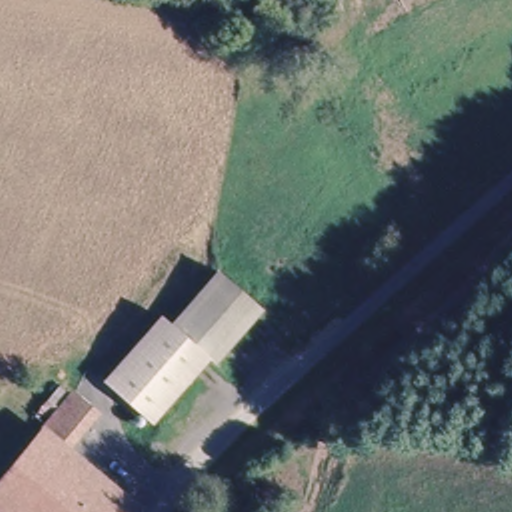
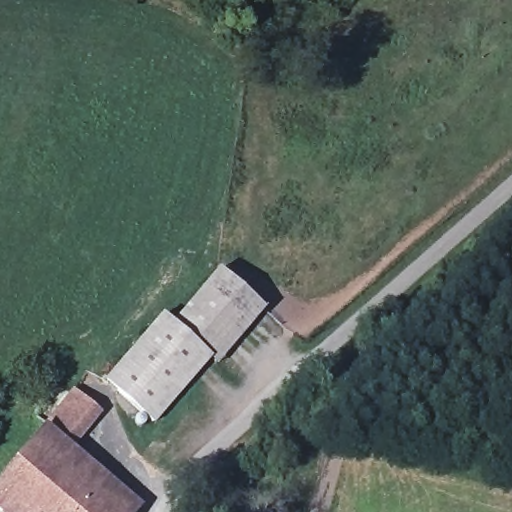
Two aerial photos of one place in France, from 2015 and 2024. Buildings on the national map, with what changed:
unchanged [(201,373),(191,365),(138,426),(106,398),(214,275),(256,311),(201,373)]
unchanged [(56,381),(70,394),(101,409),(68,447),(133,504),(125,512),(7,512),(0,506),(0,473),(45,423),(32,409),(56,381)]

